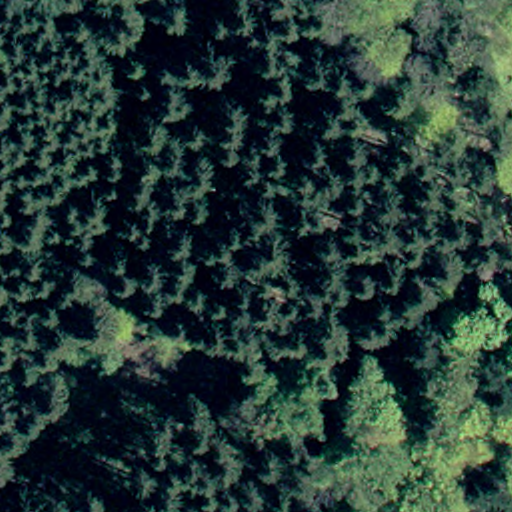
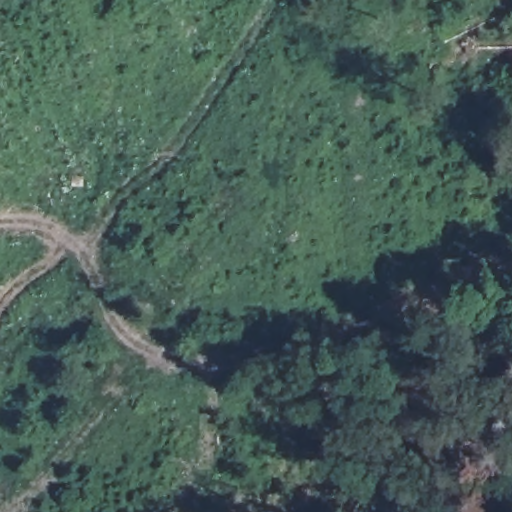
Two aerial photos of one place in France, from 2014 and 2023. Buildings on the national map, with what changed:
unchanged [(70,153),(88,155),(87,173),(80,173),(80,180),(67,179),(70,153)]

